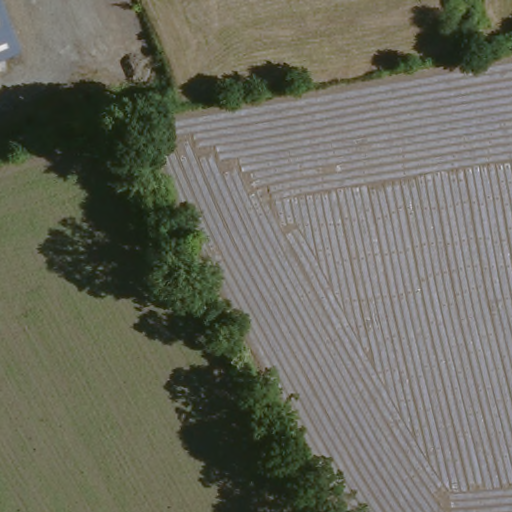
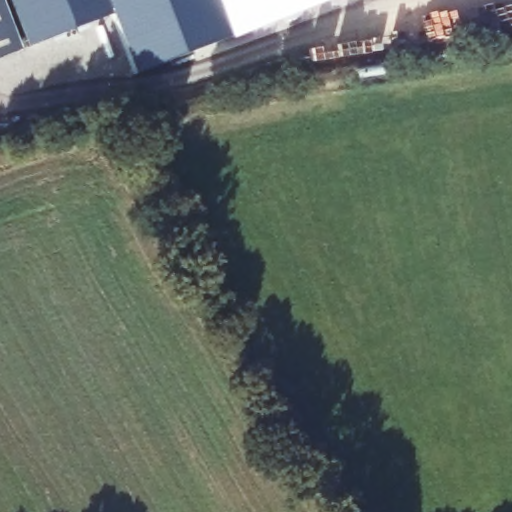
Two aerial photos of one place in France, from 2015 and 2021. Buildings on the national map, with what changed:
unchanged [(0,56),(0,0),(1,0),(21,49),(0,56)]
new [(325,0),(325,1),(231,39),(134,76),(111,16),(27,48),(8,0),(325,0)]

